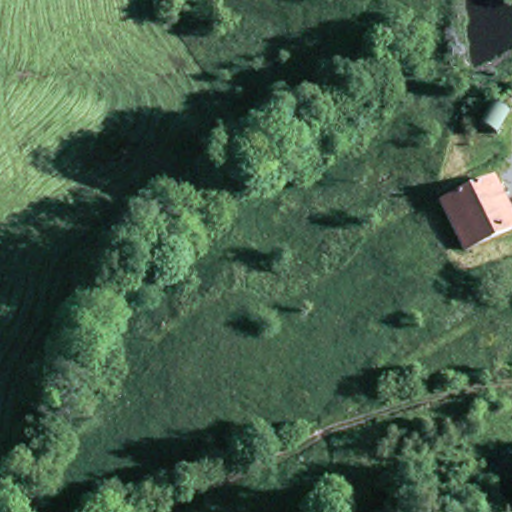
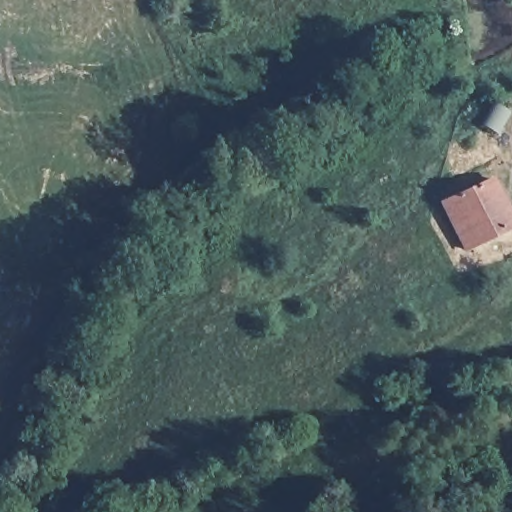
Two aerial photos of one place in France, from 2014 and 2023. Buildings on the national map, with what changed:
unchanged [(461,245),(437,199),(489,177),(509,225),(461,245)]

